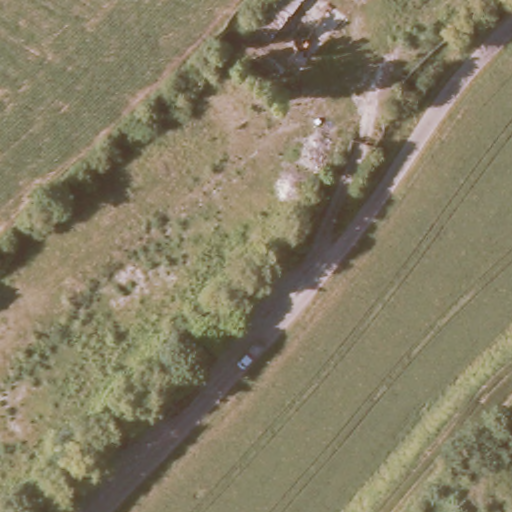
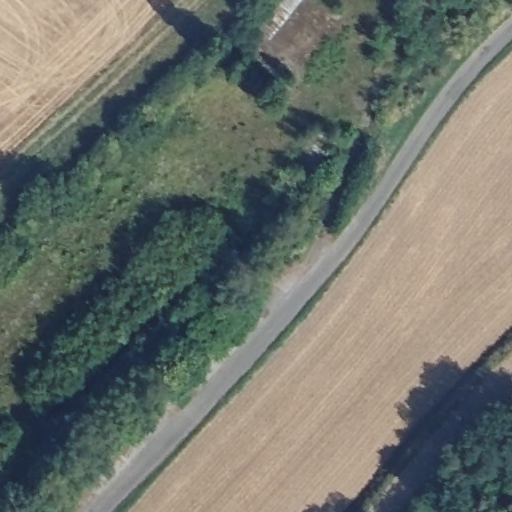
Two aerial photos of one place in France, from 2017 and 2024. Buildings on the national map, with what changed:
unchanged [(273,44),(249,32),(269,0),(305,0),(273,44)]

